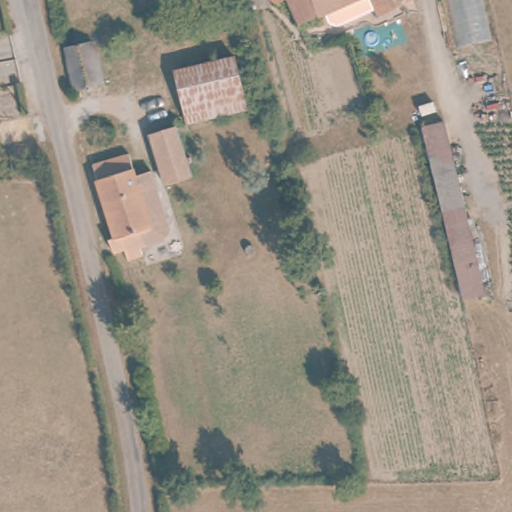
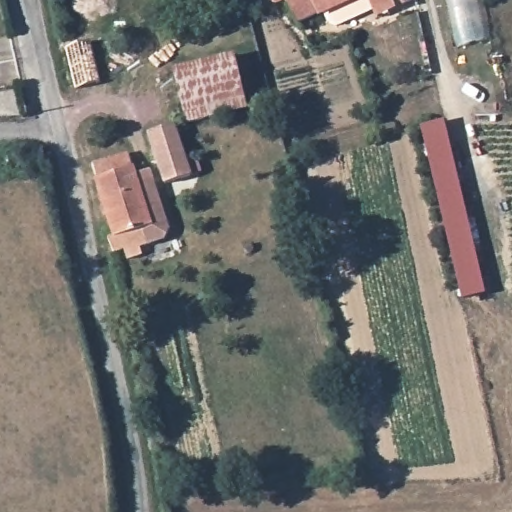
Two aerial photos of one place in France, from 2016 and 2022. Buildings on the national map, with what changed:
unchanged [(288,0),(353,0),(299,25),(288,0)]
unchanged [(63,44),(101,36),(110,84),(74,91),(63,44)]
unchanged [(237,56),(247,99),(194,112),(183,69),(237,56)]
unchanged [(422,126),(446,121),(488,291),(464,297),(422,126)]
unchanged [(155,131),(180,125),(185,145),(191,173),(167,179),(155,131)]
unchanged [(162,239),(146,241),(136,243),(138,251),(123,254),(122,246),(107,249),(102,229),(110,228),(92,161),(131,151),(137,174),(153,170),(153,173),(168,230),(162,239)]

